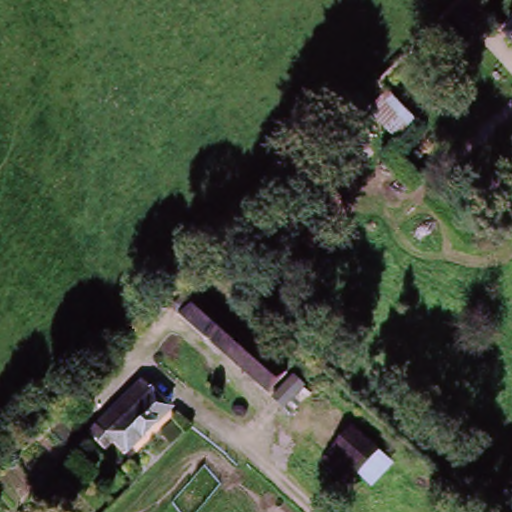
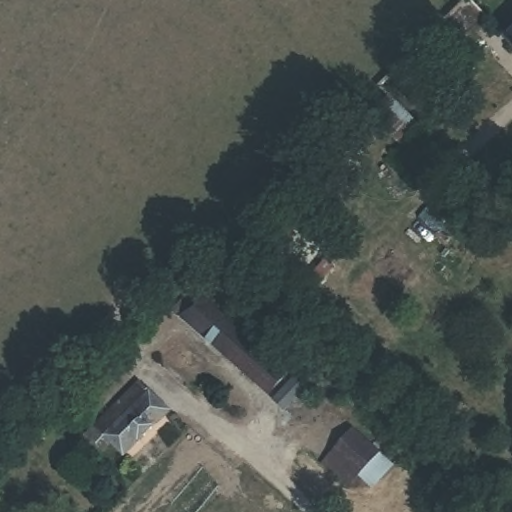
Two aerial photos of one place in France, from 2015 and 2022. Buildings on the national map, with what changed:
unchanged [(445,15),(461,0),(462,0),(463,1),(485,21),(468,37),(447,17),(445,15)]
unchanged [(505,49),(512,42),(512,55),(505,49)]
unchanged [(417,131),(402,147),(370,115),(387,99),(417,131)]
unchanged [(175,315),(189,304),(197,310),(208,300),(290,378),(270,400),(175,315)]
unchanged [(139,385),(168,413),(125,455),(95,426),(139,385)]
unchanged [(340,468),(360,447),(385,472),(365,492),(340,468)]

